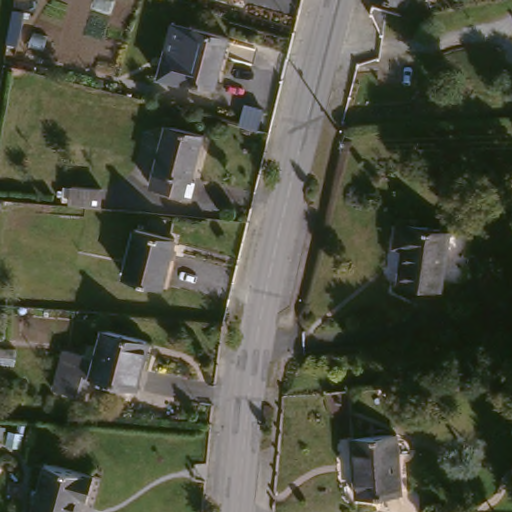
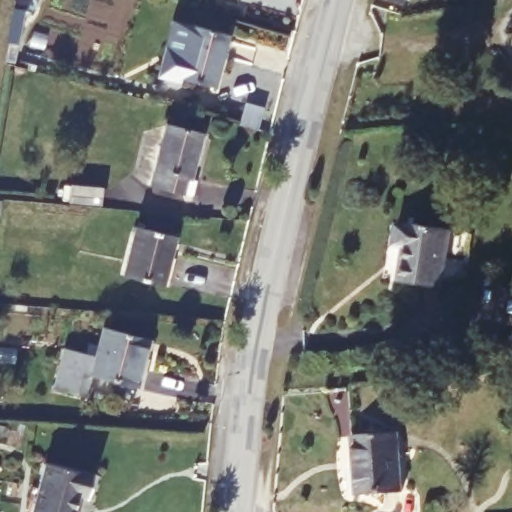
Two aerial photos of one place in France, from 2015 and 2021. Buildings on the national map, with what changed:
unchanged [(394,0),(410,0),(409,4),(394,0)]
unchanged [(216,92),(182,82),(181,86),(156,80),(163,53),(188,60),(196,30),(230,40),(216,92)]
unchanged [(163,123),(199,134),(186,177),(193,179),(188,195),(145,181),(163,123)]
unchanged [(66,173),(96,178),(94,198),(62,193),(66,173)]
unchanged [(134,226),(175,239),(161,287),(120,275),(134,226)]
unchanged [(409,230),(409,226),(451,230),(446,289),(404,285),(407,252),(396,252),(398,230),(409,230)]
unchanged [(64,358),(94,364),(101,333),(147,344),(136,387),(90,377),(83,399),(55,394),(64,358)]
unchanged [(399,434),(403,494),(354,500),(349,438),(399,434)]
unchanged [(42,470),(90,483),(85,508),(75,505),(73,512),(28,512),(42,470)]

